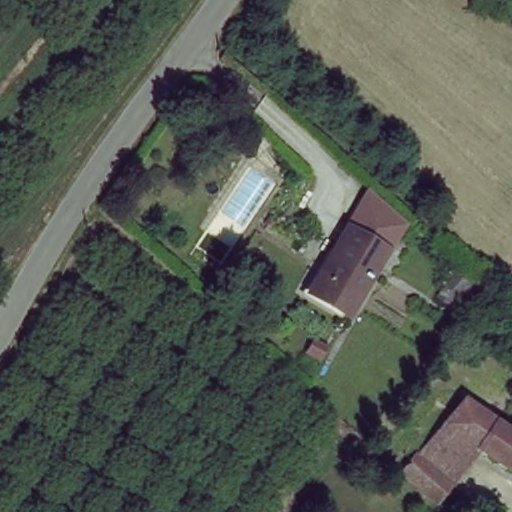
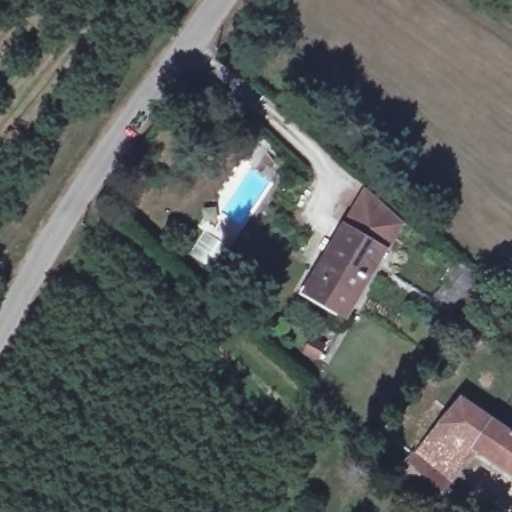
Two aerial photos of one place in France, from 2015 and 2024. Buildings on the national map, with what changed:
unchanged [(362,191),(406,218),(347,320),(302,291),(362,191)]
unchanged [(512,433),(512,479),(475,455),(433,506),(395,476),(422,446),(407,436),(435,401),(457,416),(465,402),(512,433)]

